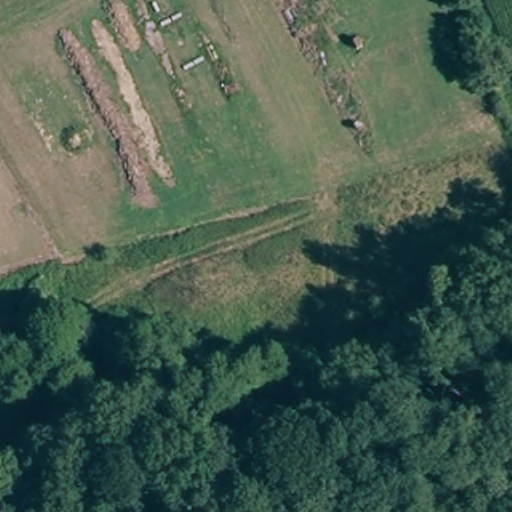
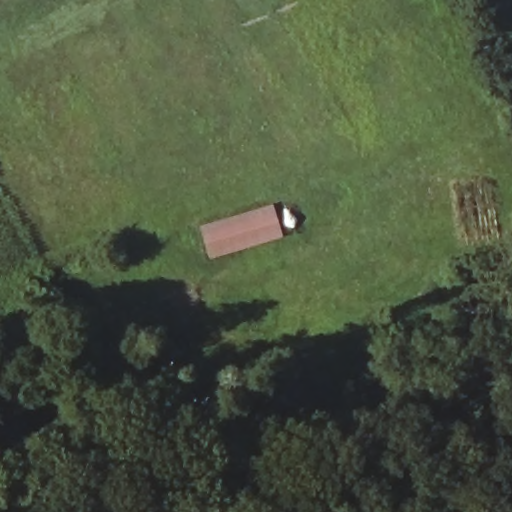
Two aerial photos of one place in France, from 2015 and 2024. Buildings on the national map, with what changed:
new [(212,259),(202,227),(274,204),(283,238),(212,259)]

